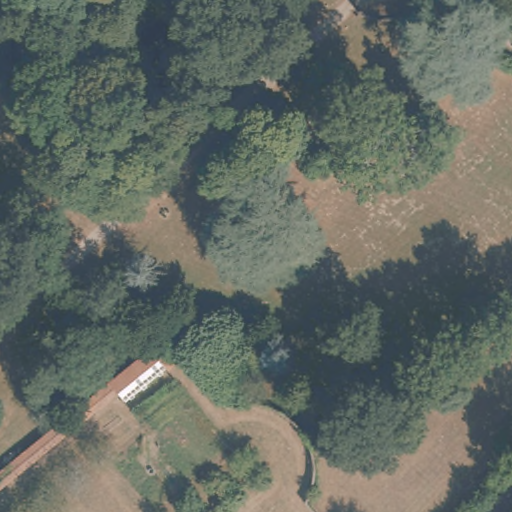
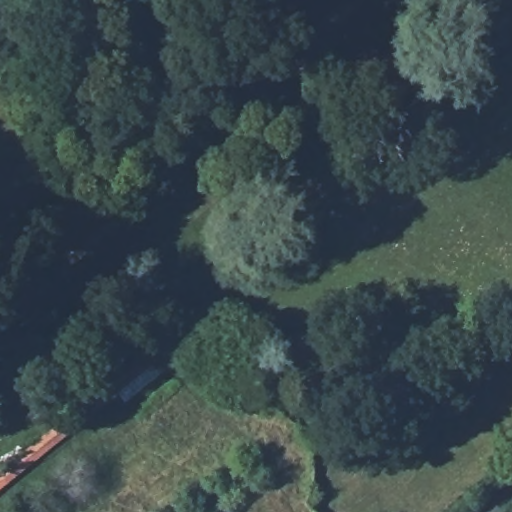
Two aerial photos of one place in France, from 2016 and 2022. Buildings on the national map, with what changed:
unchanged [(188,358),(171,370),(169,368),(126,400),(120,393),(0,493),(0,465),(172,336),(188,358)]

